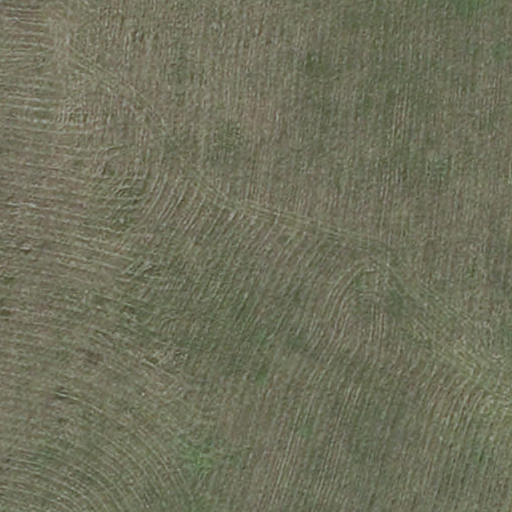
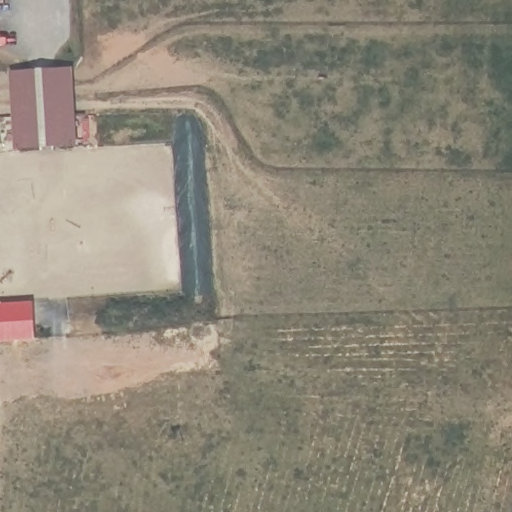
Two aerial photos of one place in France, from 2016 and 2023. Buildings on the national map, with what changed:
new [(69,69),(74,129),(12,134),(7,74),(69,69)]
new [(74,129),(75,147),(13,150),(12,134),(74,129)]

